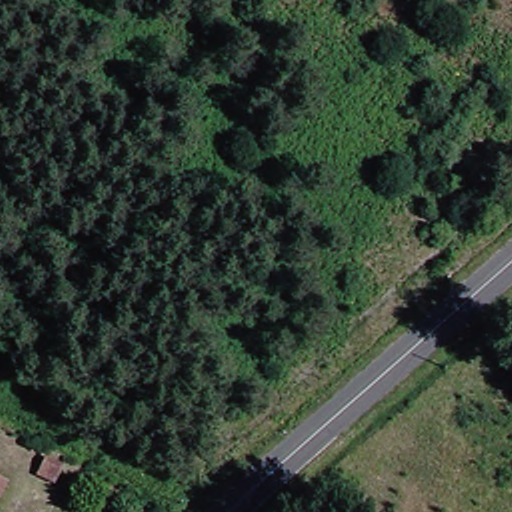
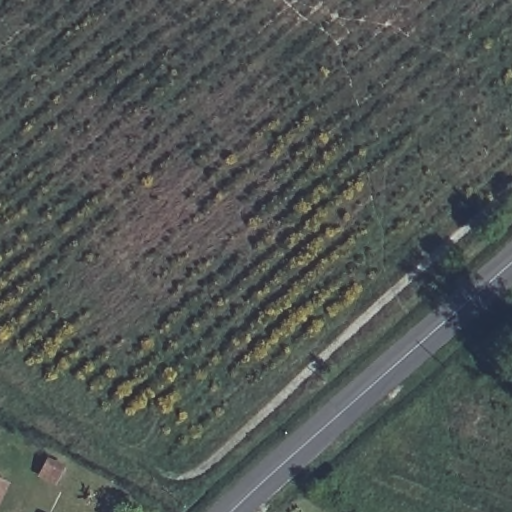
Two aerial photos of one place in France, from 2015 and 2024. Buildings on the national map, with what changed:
unchanged [(60,475),(36,467),(44,444),(68,461),(60,475)]

